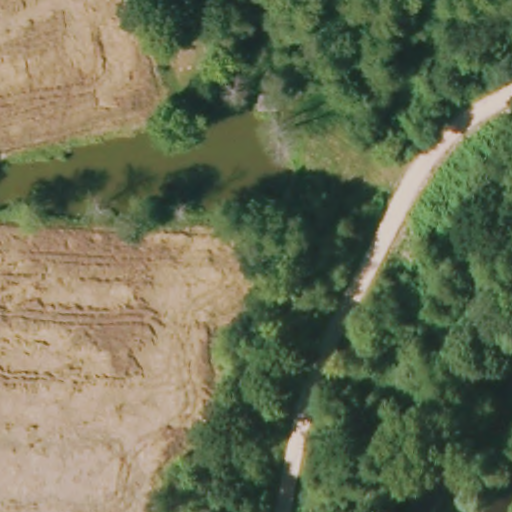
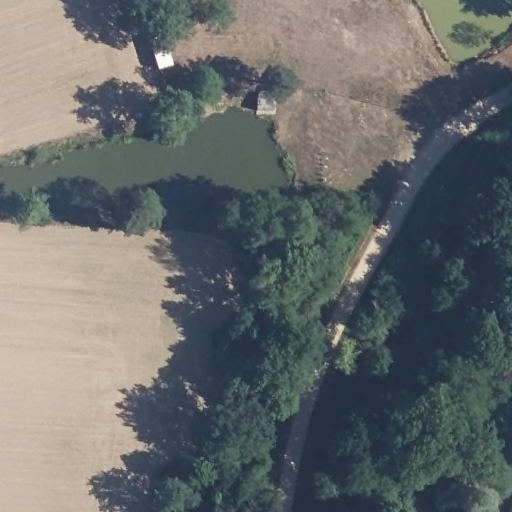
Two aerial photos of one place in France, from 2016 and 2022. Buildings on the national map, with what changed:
unchanged [(259,95),(275,95),(274,110),(258,110),(259,95)]

